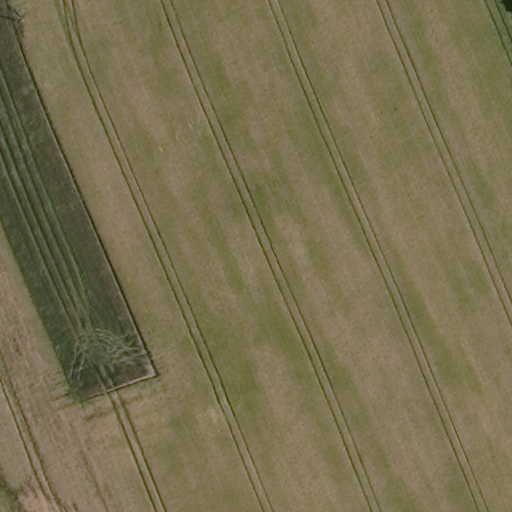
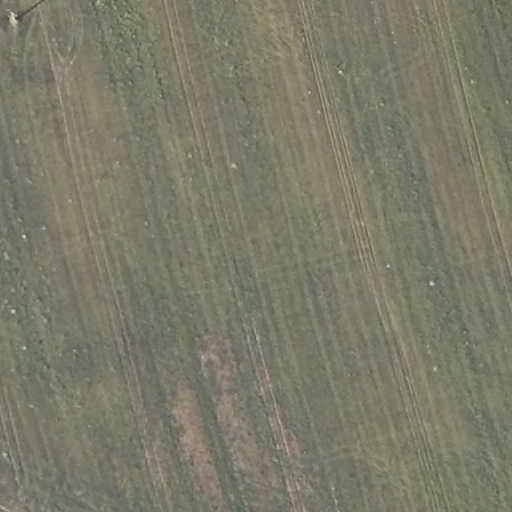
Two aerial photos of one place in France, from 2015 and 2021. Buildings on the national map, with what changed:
[]

